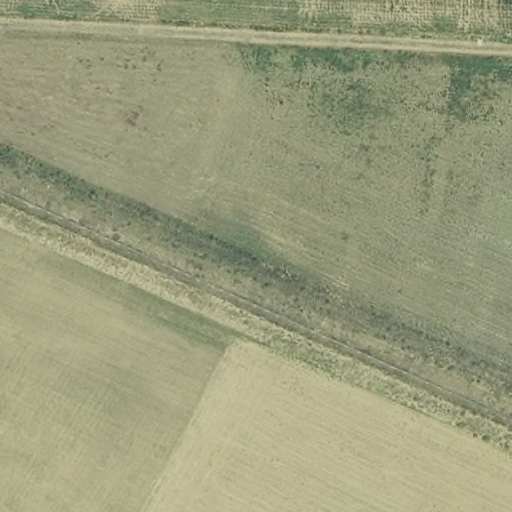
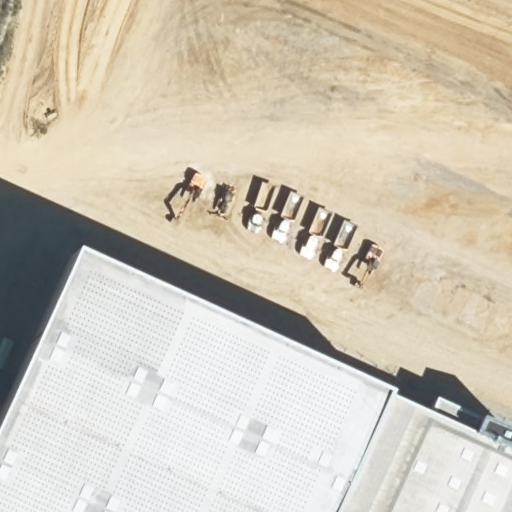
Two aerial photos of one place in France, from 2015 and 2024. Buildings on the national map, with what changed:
new [(512,512),(0,512),(0,427),(69,265),(512,466),(512,512)]

